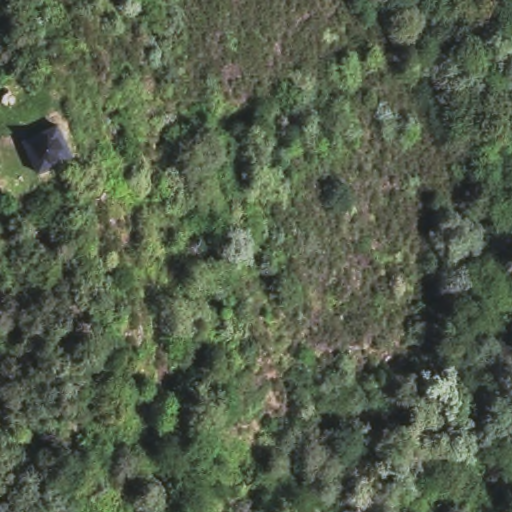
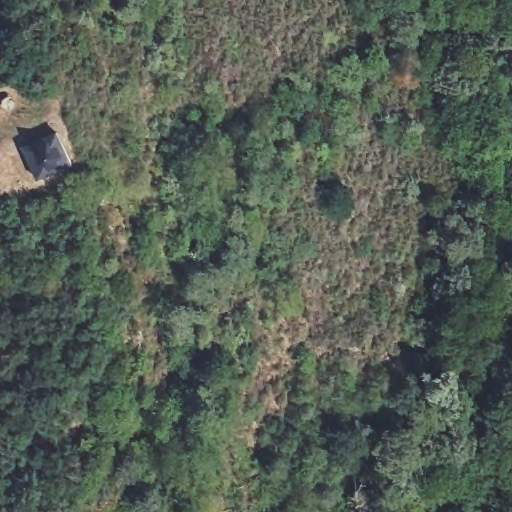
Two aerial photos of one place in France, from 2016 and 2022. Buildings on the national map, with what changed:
unchanged [(29,140),(70,121),(84,151),(44,173),(29,140)]

